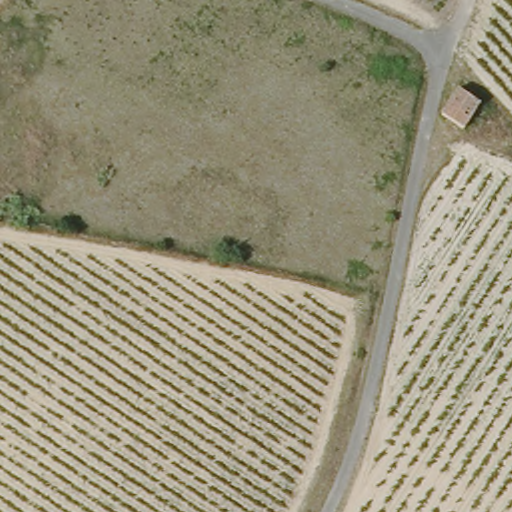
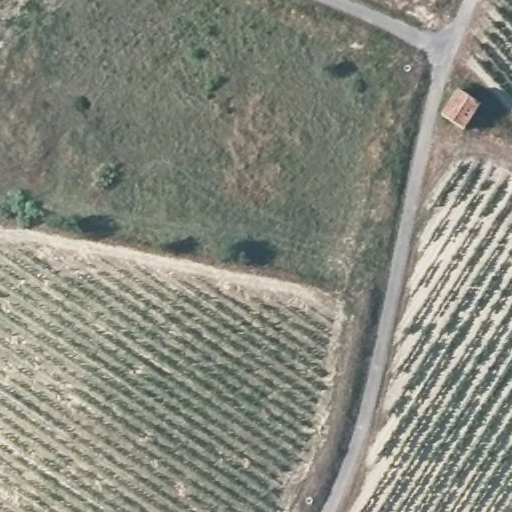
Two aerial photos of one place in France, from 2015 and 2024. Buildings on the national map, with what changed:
unchanged [(460,89),(480,104),(462,128),(442,114),(460,89)]

